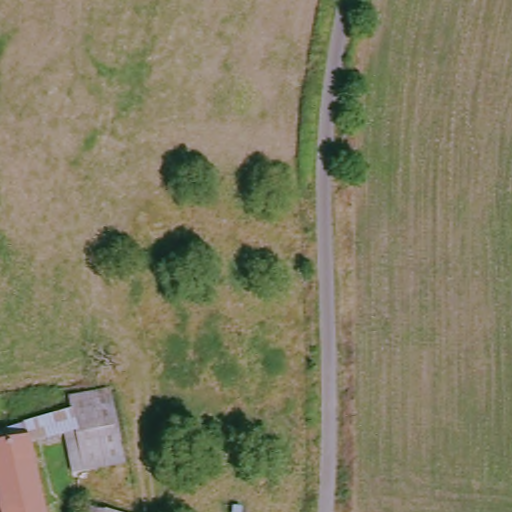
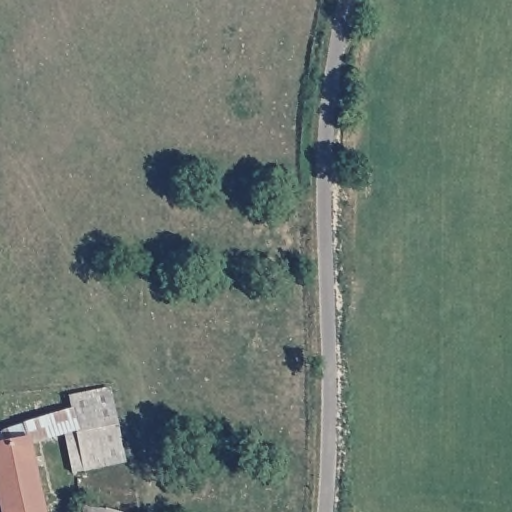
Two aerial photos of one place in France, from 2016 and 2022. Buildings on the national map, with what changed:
unchanged [(66,410),(70,409),(68,394),(108,387),(121,461),(74,471),(64,431),(71,428),(66,410)]
unchanged [(66,410),(71,428),(64,431),(23,441),(0,447),(0,430),(66,410)]
unchanged [(43,512),(1,512),(0,508),(0,447),(23,441),(43,512)]
unchanged [(125,512),(83,512),(85,505),(125,512)]

